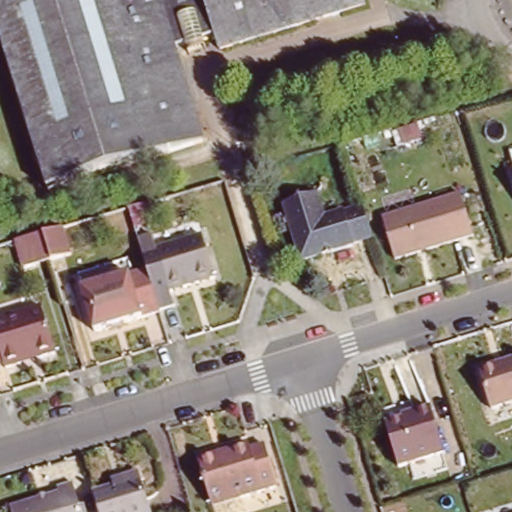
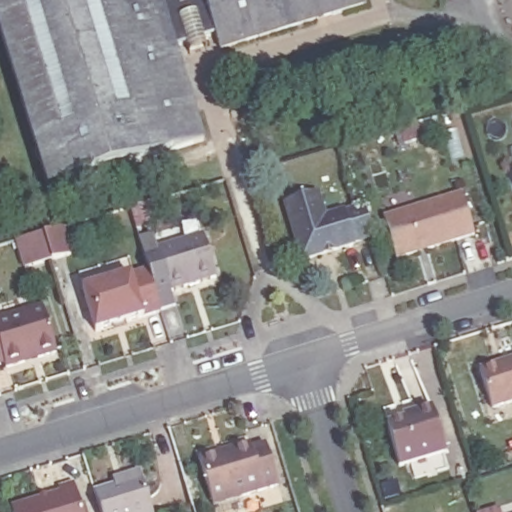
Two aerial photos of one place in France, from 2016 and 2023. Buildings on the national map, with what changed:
unchanged [(169,45),(196,138),(40,185),(0,53),(0,0),(359,0),(360,3),(216,48),(212,33),(169,45)]
unchanged [(354,243),(300,260),(283,202),(317,191),(325,216),(344,209),(345,212),(362,206),(371,235),(353,241),(354,243)]
unchanged [(460,191),(475,236),(395,259),(381,214),(460,191)]
unchanged [(42,228),(49,251),(25,259),(19,235),(42,228)]
unchanged [(202,230),(215,272),(170,286),(157,244),(202,230)]
unchanged [(142,265),(155,307),(90,327),(77,285),(142,265)]
unchanged [(2,358),(0,359),(0,317),(42,304),(55,347),(36,353),(22,357),(4,362),(2,358)]
unchanged [(492,409),(478,366),(512,354),(512,403),(492,409)]
unchanged [(415,415),(412,411),(430,406),(444,452),(397,466),(385,424),(415,415)]
unchanged [(245,442),(246,447),(260,443),(272,484),(221,500),(207,454),(245,442)]
unchanged [(92,492),(110,487),(108,480),(138,471),(140,479),(149,512),(97,512),(92,492)]
unchanged [(9,507),(57,493),(55,486),(71,481),(80,512),(10,512),(9,507)]

